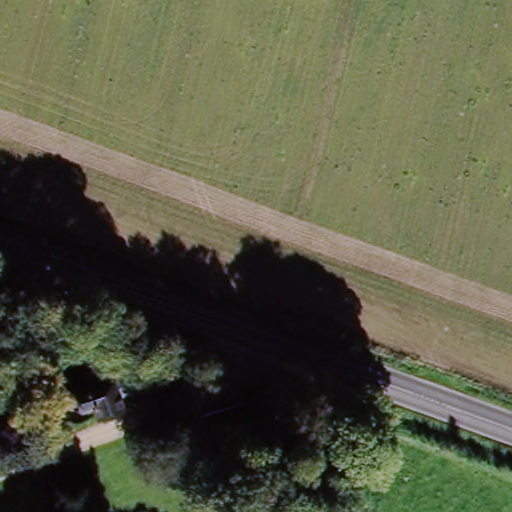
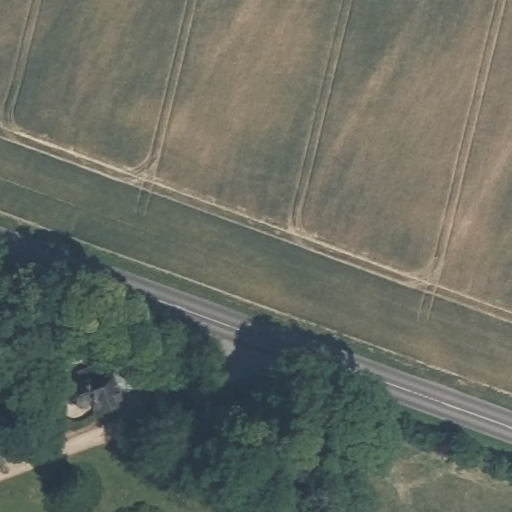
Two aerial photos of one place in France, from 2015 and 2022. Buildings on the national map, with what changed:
unchanged [(112,390),(127,382),(135,397),(121,403),(127,415),(100,426),(95,414),(82,419),(70,410),(66,401),(69,400),(67,392),(105,376),(112,390)]

